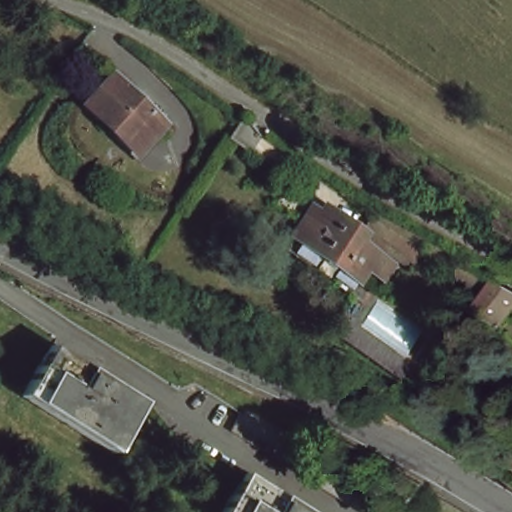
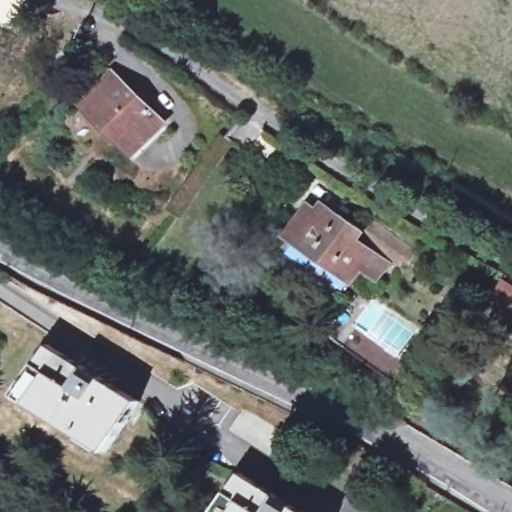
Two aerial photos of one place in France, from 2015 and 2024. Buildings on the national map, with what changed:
unchanged [(163,118),(132,150),(81,101),(110,69),(163,118)]
unchanged [(309,213),(313,208),(352,235),(347,242),(381,265),(369,282),(354,271),(344,284),(276,237),(285,225),(299,206),(309,213)]
unchanged [(401,253),(394,263),(352,235),(360,223),(401,253)]
unchanged [(336,296),(268,249),(276,237),(344,284),(336,296)]
unchanged [(512,321),(486,305),(502,278),(512,285),(512,321)]
unchanged [(134,398),(105,444),(15,389),(43,343),(134,398)]
unchanged [(231,425),(246,402),(410,505),(406,512),(368,512),(231,425)]
unchanged [(238,472),(300,512),(213,512),(238,472)]

